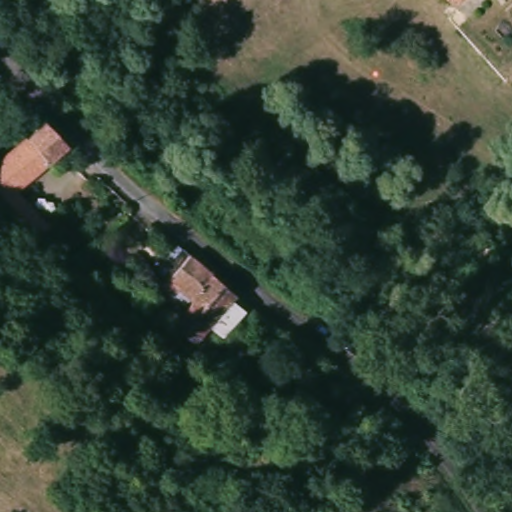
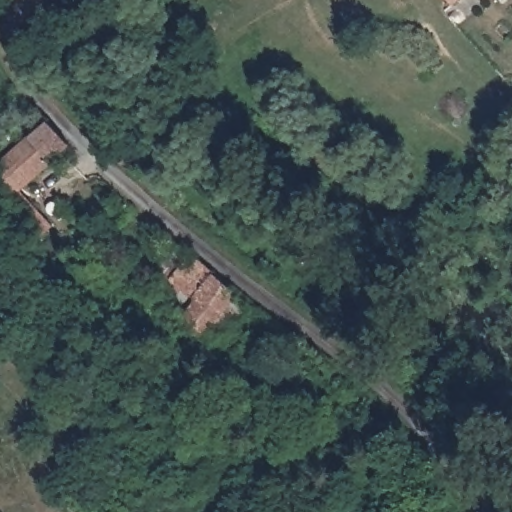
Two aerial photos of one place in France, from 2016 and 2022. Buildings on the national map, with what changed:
unchanged [(448,6),(441,0),(455,0),(448,6)]
unchanged [(67,147),(15,194),(51,233),(34,250),(19,238),(0,217),(0,162),(43,122),(67,147)]
unchanged [(159,290),(191,247),(238,290),(191,351),(184,346),(169,335),(187,311),(159,290)]

